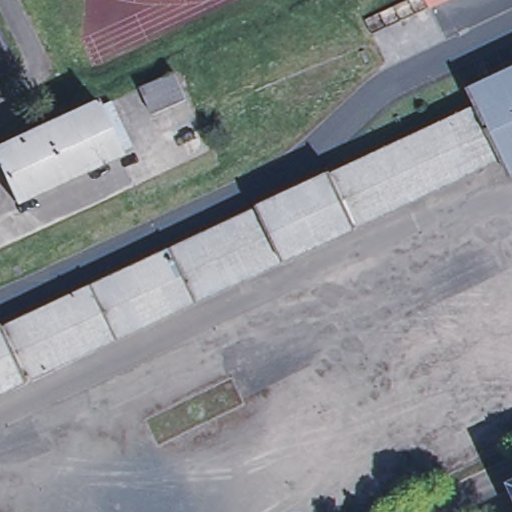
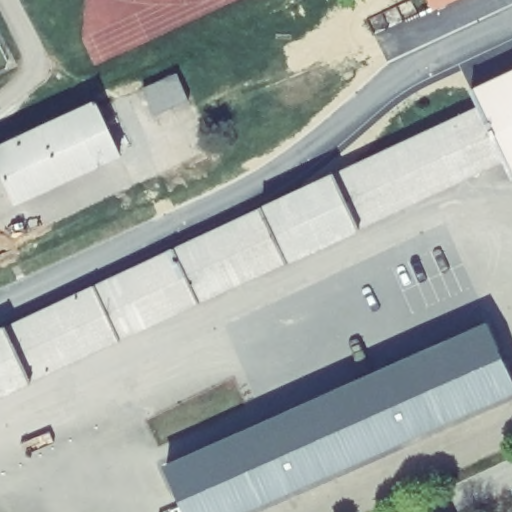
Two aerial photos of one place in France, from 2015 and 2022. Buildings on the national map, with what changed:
unchanged [(436,3),(435,0),(441,0),(436,3)]
unchanged [(505,160),(360,227),(360,229),(287,262),(286,261),(31,380),(32,381),(0,395),(0,329),(6,326),(6,328),(262,208),(262,206),(334,174),(335,175),(480,107),(472,89),(512,70),(512,175),(505,160)]
unchanged [(177,74),(190,100),(156,116),(144,90),(177,74)]
unchanged [(15,202),(0,171),(0,147),(98,103),(122,153),(15,202)]
new [(512,379),(512,394),(244,512),(185,512),(164,464),(486,323),(512,379)]

